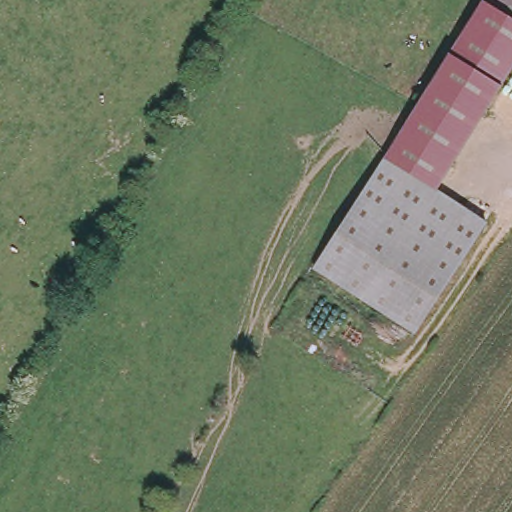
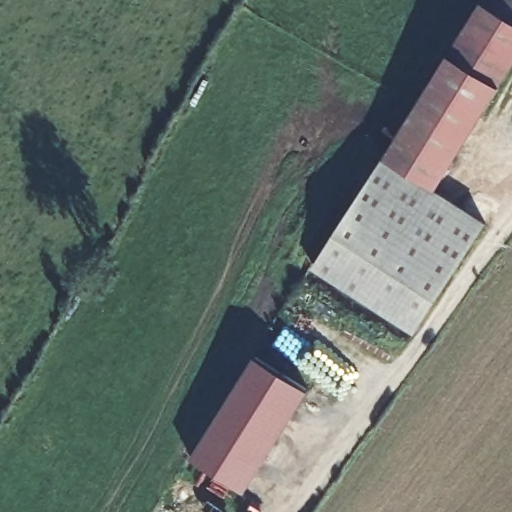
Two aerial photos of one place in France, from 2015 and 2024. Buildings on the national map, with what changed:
unchanged [(512,69),(435,193),(381,158),(484,0),(487,0),(512,18),(512,69)]
unchanged [(512,0),(512,18),(486,0),(512,0)]
unchanged [(310,268),(381,158),(484,224),(411,334),(310,268)]
new [(256,355),(311,389),(246,493),(191,458),(256,355)]

